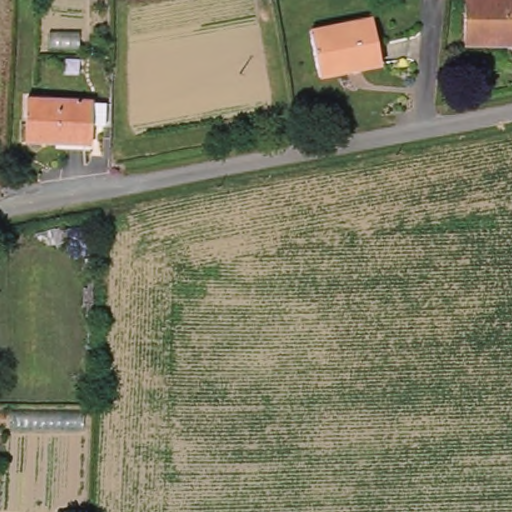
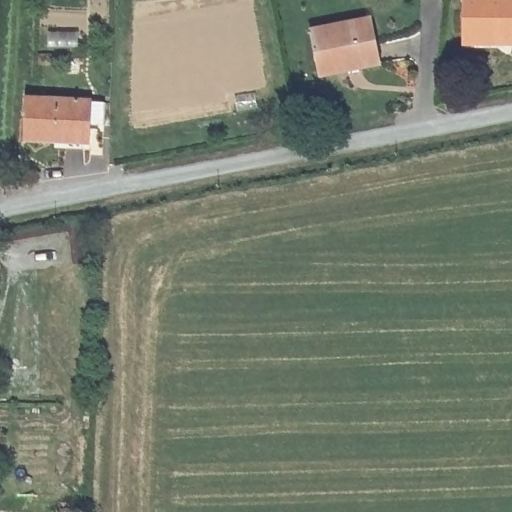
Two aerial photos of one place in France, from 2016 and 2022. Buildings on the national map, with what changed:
unchanged [(464,0),(512,0),(512,48),(463,48),(464,0)]
unchanged [(379,60),(317,72),(308,29),(371,17),(379,60)]
unchanged [(28,144),(30,100),(91,101),(91,105),(104,106),(104,130),(90,130),(89,145),(28,144)]

